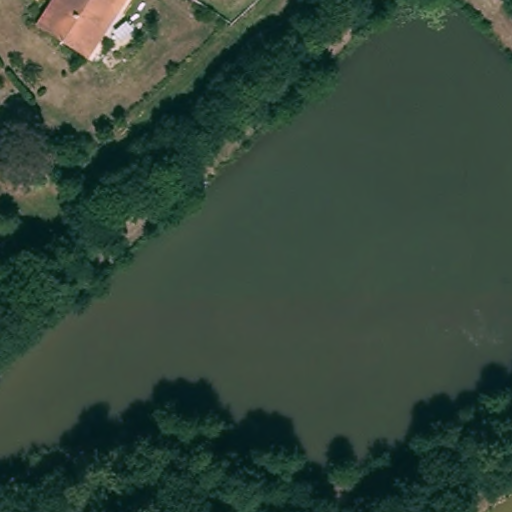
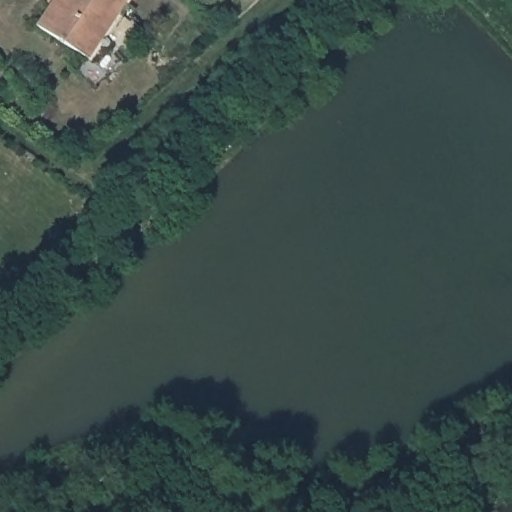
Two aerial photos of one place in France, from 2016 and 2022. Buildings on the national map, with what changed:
unchanged [(95,35),(101,39),(88,58),(36,24),(49,5),(53,8),(59,0),(117,0),(95,35)]
unchanged [(124,4),(118,0),(126,0),(124,4)]

